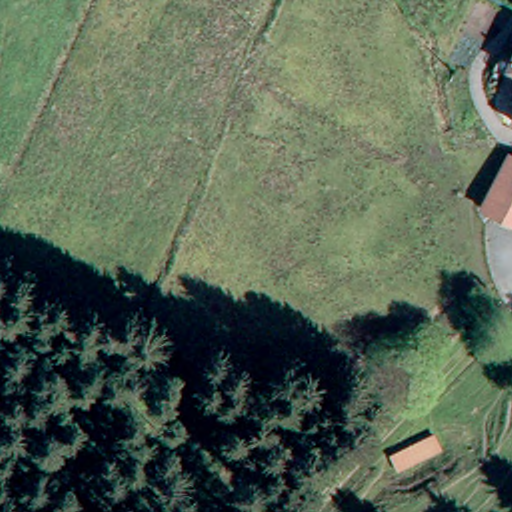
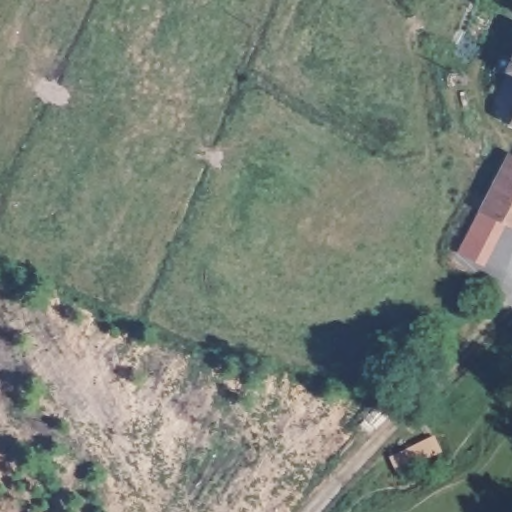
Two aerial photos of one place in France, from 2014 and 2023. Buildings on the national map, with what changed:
unchanged [(502,71),(512,50),(512,75),(502,71)]
unchanged [(506,120),(512,108),(512,123),(506,120)]
unchanged [(477,206),(506,147),(512,151),(512,224),(477,206)]
new [(481,208),(507,222),(484,267),(458,252),(481,208)]

